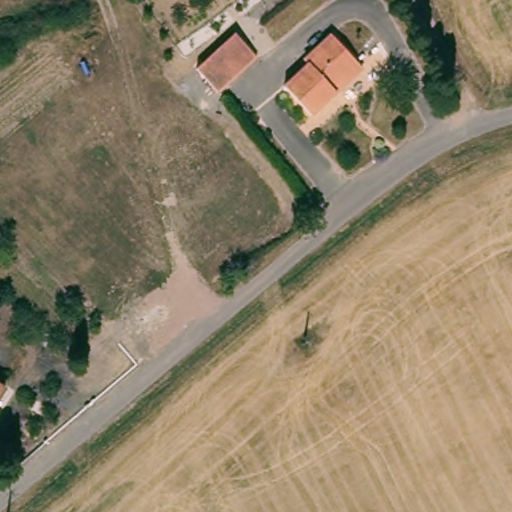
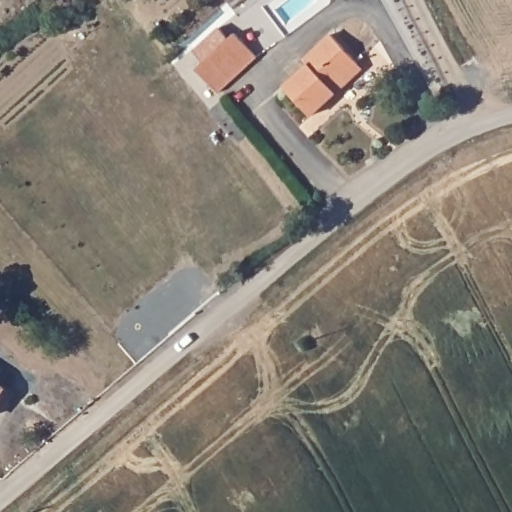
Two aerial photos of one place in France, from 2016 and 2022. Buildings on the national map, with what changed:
unchanged [(228,29),(250,54),(209,89),(190,65),(228,29)]
unchanged [(331,91),(337,101),(310,120),(288,87),(312,70),(306,61),(336,40),(357,71),(331,91)]
unchanged [(0,392),(0,389),(1,390),(0,392)]

